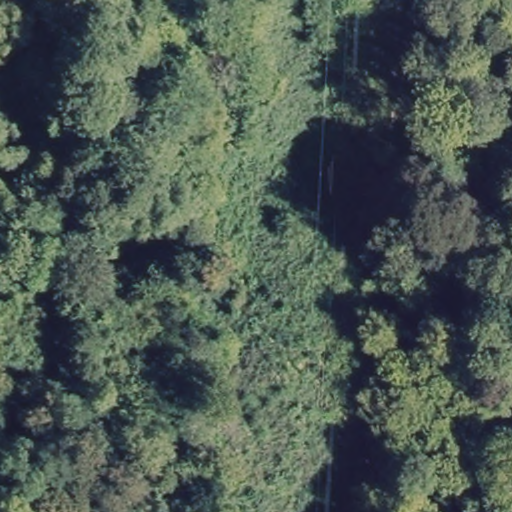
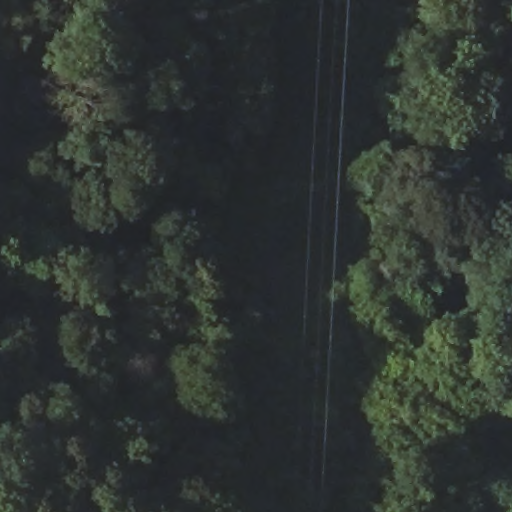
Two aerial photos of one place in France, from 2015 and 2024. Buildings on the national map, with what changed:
unchanged [(446,465),(464,512),(416,512),(407,483),(446,465)]

